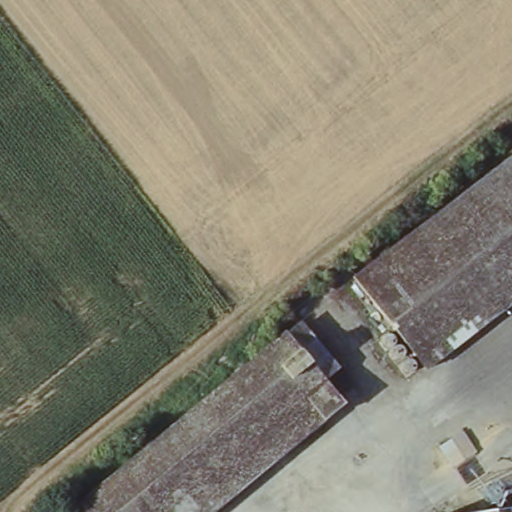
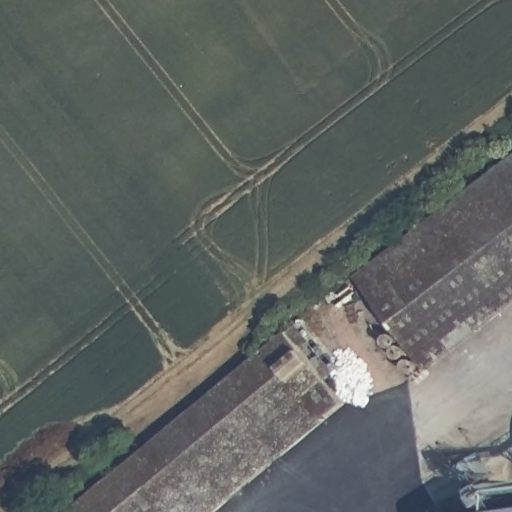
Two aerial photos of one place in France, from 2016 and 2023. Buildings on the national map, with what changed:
unchanged [(367,266),(512,157),(512,304),(438,360),(367,266)]
unchanged [(212,512),(73,512),(282,334),(340,402),(212,512)]
unchanged [(431,361),(421,368),(405,348),(415,340),(431,361)]

